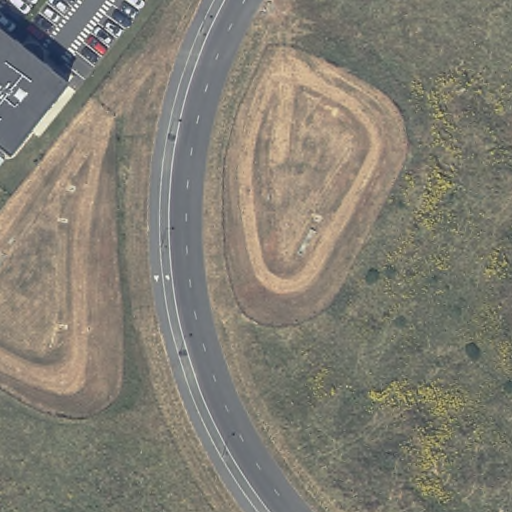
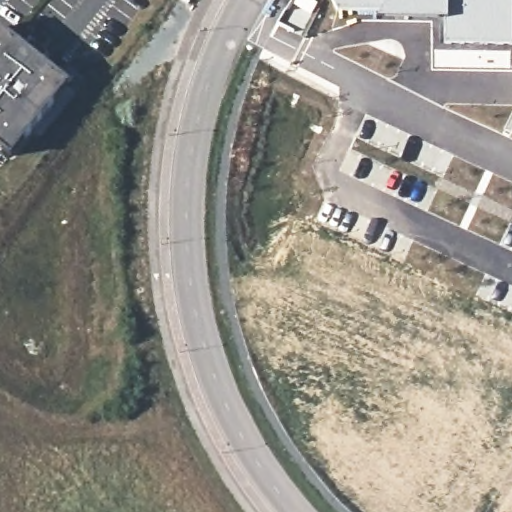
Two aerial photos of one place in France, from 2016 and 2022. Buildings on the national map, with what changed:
new [(443,42),(439,17),(376,16),(379,11),(333,10),(329,0),(512,0),(512,42),(443,42)]
unchanged [(11,157),(0,148),(0,31),(68,85),(11,157)]

